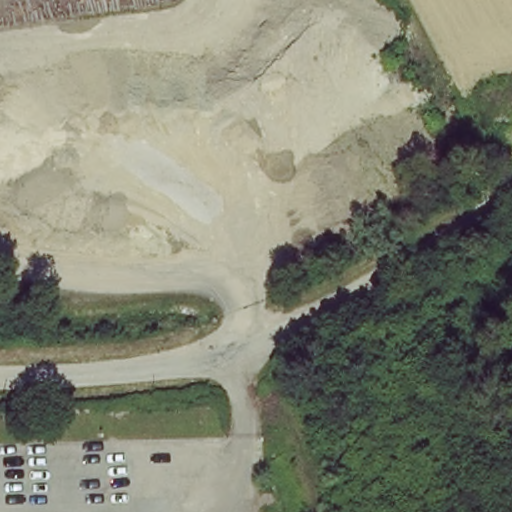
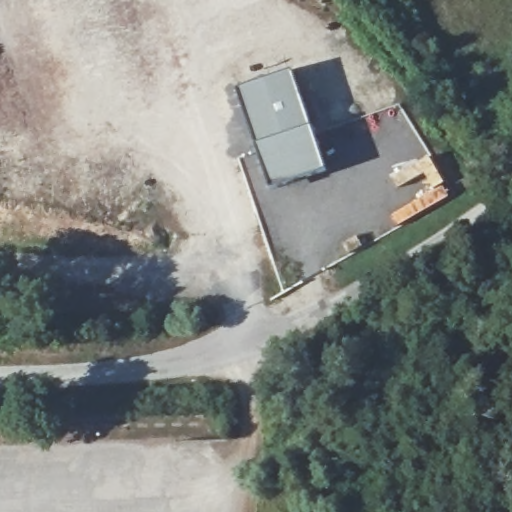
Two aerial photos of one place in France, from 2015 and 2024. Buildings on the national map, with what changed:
new [(285,69),(321,172),(267,188),(229,88),(285,69)]

